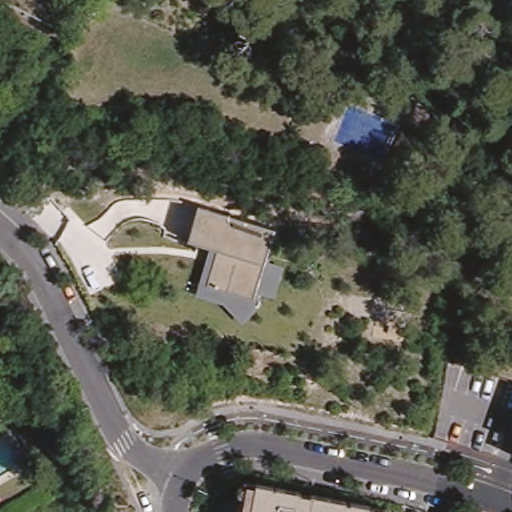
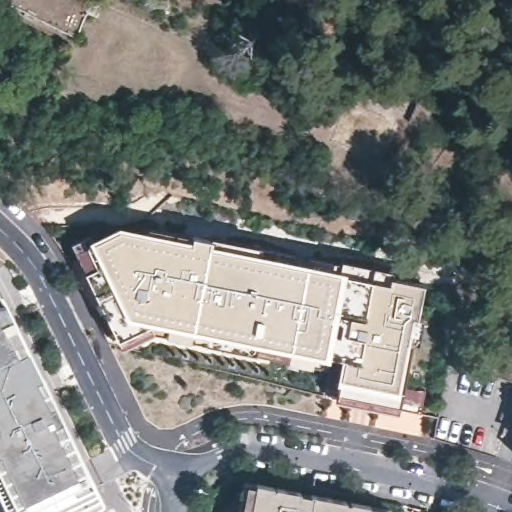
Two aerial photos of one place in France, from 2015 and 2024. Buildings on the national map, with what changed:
demolished [(272,232),(253,298),(208,287),(213,251),(187,244),(196,207),(272,232)]
new [(72,245),(91,239),(120,227),(342,272),(390,285),(391,278),(424,285),(417,317),(411,316),(398,392),(396,404),(336,392),(336,381),(341,355),(329,352),(327,358),(314,354),(312,367),(205,341),(207,334),(150,322),(117,337),(85,273),(72,245)]
new [(89,471),(104,505),(91,512),(9,512),(0,495),(0,305),(7,304),(89,471)]
unchanged [(240,512),(243,484),(362,507),(381,507),(382,512),(240,512)]

